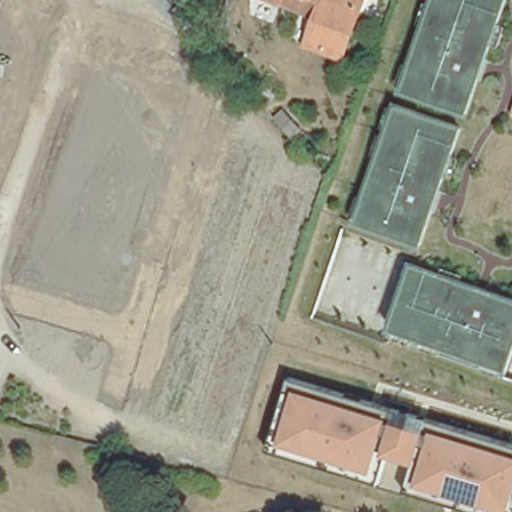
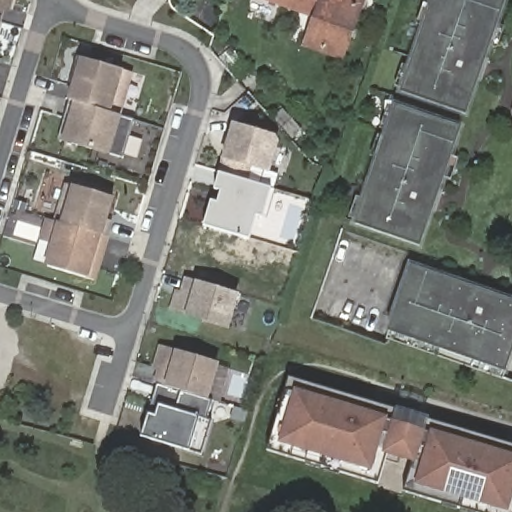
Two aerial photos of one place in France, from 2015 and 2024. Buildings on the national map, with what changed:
new [(3,10),(0,19),(0,0),(15,0),(11,12),(3,10)]
unchanged [(303,49),(321,0),(364,0),(342,63),(303,49)]
unchanged [(433,0),(509,0),(467,116),(400,93),(433,0)]
new [(2,22),(0,30),(0,21),(2,22)]
new [(122,115),(74,101),(67,99),(79,57),(134,73),(122,115)]
new [(123,159),(63,141),(74,101),(122,115),(135,118),(123,159)]
unchanged [(355,224),(394,104),(462,127),(422,245),(355,224)]
unchanged [(512,110),(512,115),(511,112),(512,110)]
new [(271,174),(252,168),(249,180),(220,172),(222,159),(231,122),(274,134),(280,142),(271,174)]
demolished [(140,416),(230,138),(265,150),(178,428),(140,416)]
new [(211,200),(217,202),(221,191),(215,189),(220,172),(249,180),(270,188),(275,190),(267,218),(262,217),(256,215),(249,237),(204,225),(211,200)]
new [(74,186),(114,198),(102,236),(60,223),(55,221),(67,183),(74,186)]
demolished [(230,440),(194,431),(272,184),(310,195),(230,440)]
new [(55,221),(60,223),(102,236),(110,239),(96,280),(88,277),(47,264),(53,244),(40,239),(46,218),(55,221)]
unchanged [(390,333),(414,266),(512,300),(512,364),(509,372),(390,333)]
new [(185,317),(170,312),(176,290),(180,291),(185,276),(198,281),(240,293),(230,330),(185,317)]
new [(210,400),(168,388),(153,384),(157,371),(152,369),(159,345),(177,350),(220,362),(210,400)]
unchanged [(415,462),(388,455),(381,482),(268,449),(290,379),(512,445),(512,512),(471,512),(405,492),(415,462)]
new [(149,414),(157,385),(168,388),(210,400),(212,400),(206,419),(212,421),(201,454),(190,450),(142,436),(149,414)]
demolished [(116,427),(112,448),(90,444),(97,420),(116,427)]

